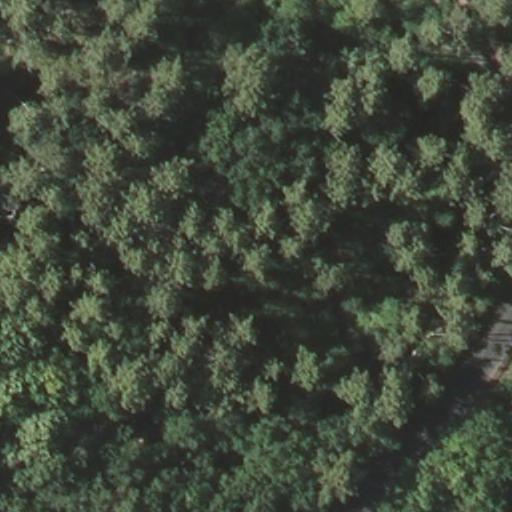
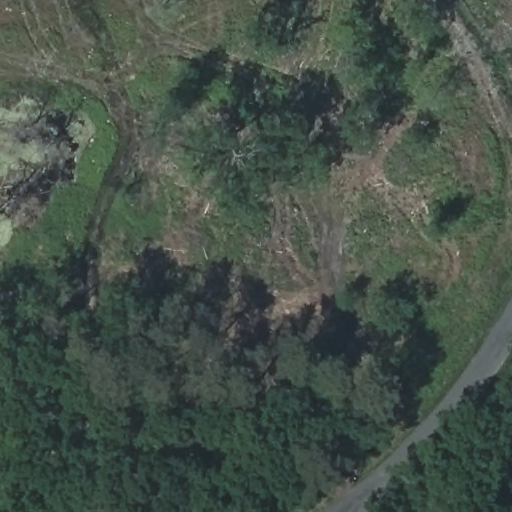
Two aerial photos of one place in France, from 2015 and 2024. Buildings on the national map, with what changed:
unchanged [(135,176),(143,134),(175,140),(169,180),(135,176)]

